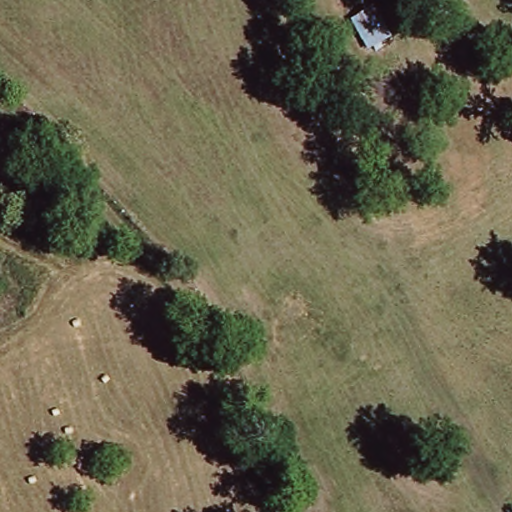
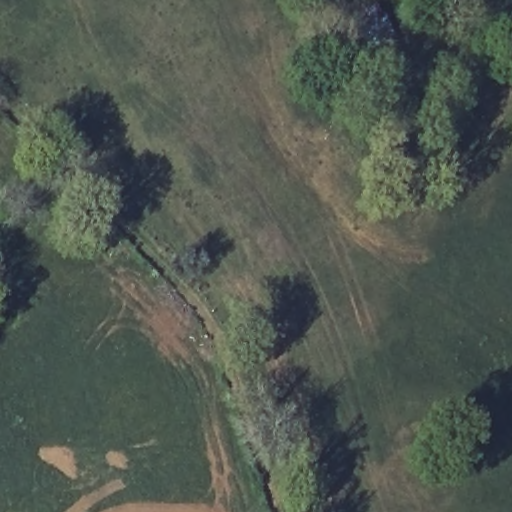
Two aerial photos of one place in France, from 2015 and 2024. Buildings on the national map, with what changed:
unchanged [(356,19),(378,7),(398,38),(375,53),(356,19)]

